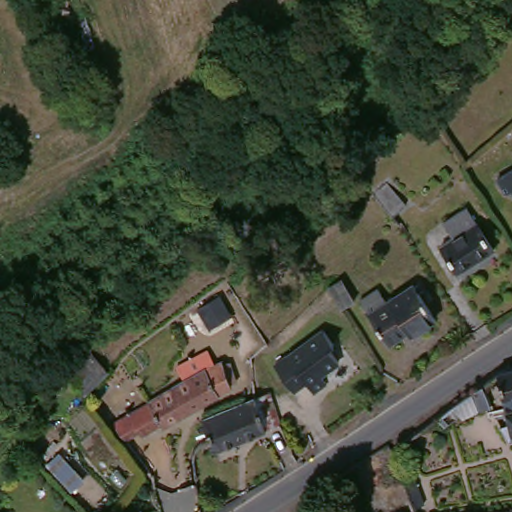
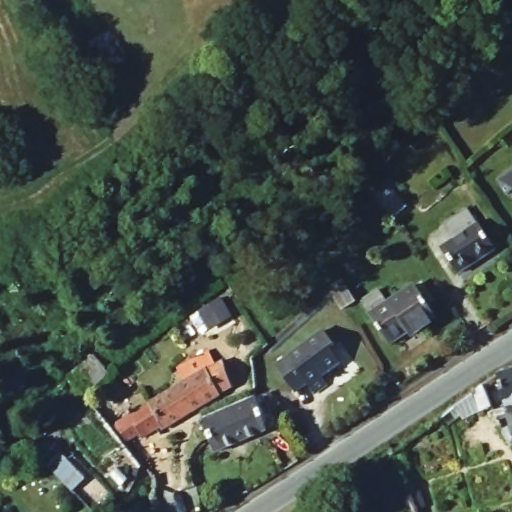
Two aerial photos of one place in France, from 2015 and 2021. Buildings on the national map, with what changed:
unchanged [(512,180),(512,207),(498,187),(512,180)]
unchanged [(406,201),(393,214),(372,193),(386,181),(406,201)]
unchanged [(441,228),(471,210),(494,250),(458,274),(443,250),(451,245),(441,228)]
unchanged [(206,315),(198,300),(219,287),(228,303),(206,315)]
unchanged [(327,296),(338,287),(354,312),(342,319),(327,296)]
unchanged [(389,349),(361,305),(379,293),(387,305),(414,288),(436,323),(411,340),(408,337),(389,349)]
unchanged [(341,362),(294,394),(271,363),(319,332),(341,362)]
unchanged [(156,429),(151,431),(138,437),(135,432),(123,438),(111,420),(139,406),(159,396),(182,384),(175,371),(206,355),(212,369),(221,367),(221,369),(221,371),(226,380),(231,393),(218,399),(216,403),(157,431),(156,429)]
unchanged [(86,399),(70,378),(85,364),(91,358),(108,379),(86,399)]
unchanged [(512,373),(512,421),(498,378),(512,373)]
unchanged [(482,408),(475,391),(488,381),(494,403),(482,408)]
unchanged [(242,408),(258,401),(270,430),(203,461),(198,449),(192,429),(242,408)]
unchanged [(51,462),(62,451),(86,478),(74,488),(51,462)]

